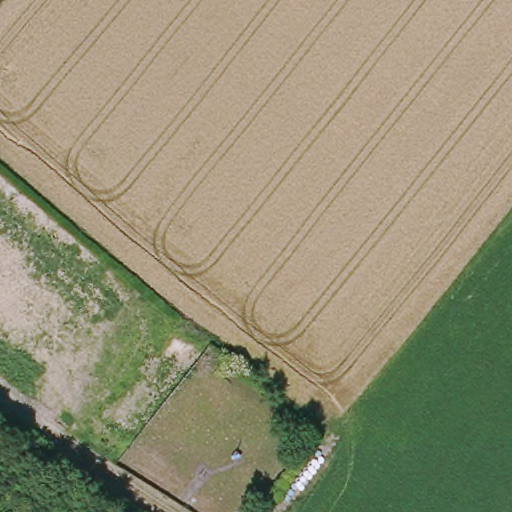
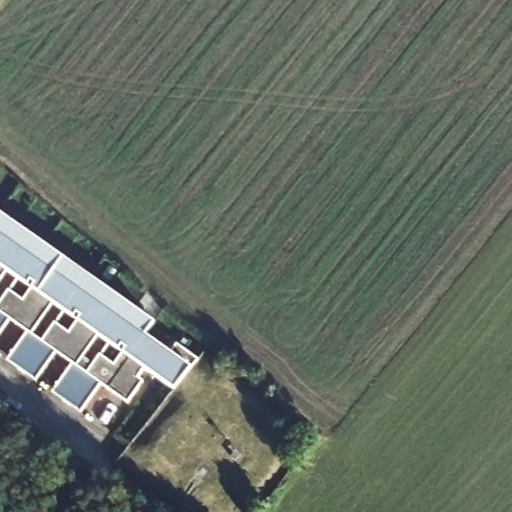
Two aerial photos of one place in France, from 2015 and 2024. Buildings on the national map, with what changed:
demolished [(97,324),(0,244),(0,194),(121,295),(97,324)]
new [(150,335),(195,367),(179,388),(145,366),(124,351),(99,334),(78,320),(54,303),(32,288),(7,271),(0,266),(0,214),(159,322),(150,335)]
new [(0,282),(0,266),(7,271),(0,282)]
new [(52,393),(71,366),(55,354),(35,380),(7,361),(27,334),(9,321),(0,333),(0,301),(7,291),(23,301),(32,288),(54,303),(31,334),(42,341),(54,324),(68,334),(78,320),(99,334),(75,366),(87,374),(99,356),(113,366),(124,351),(145,366),(137,379),(142,382),(127,404),(100,385),(80,413),(52,393)]
demolished [(25,394),(0,375),(0,330),(47,365),(25,394)]
demolished [(63,404),(79,417),(72,430),(54,416),(63,404)]

